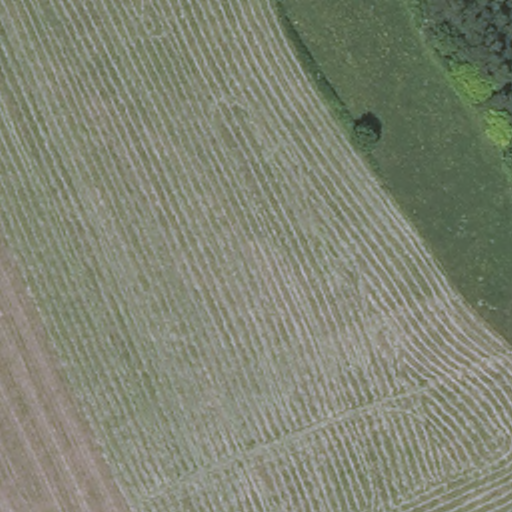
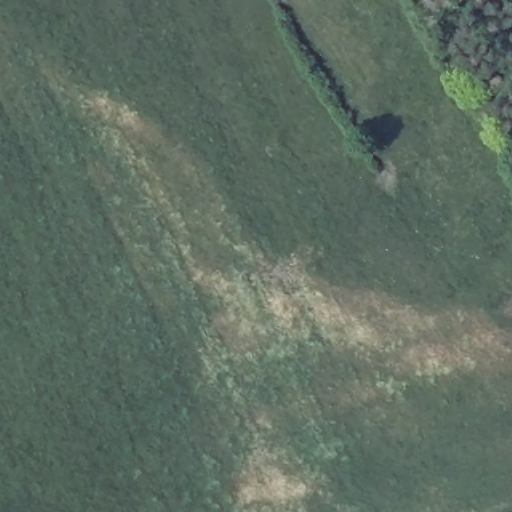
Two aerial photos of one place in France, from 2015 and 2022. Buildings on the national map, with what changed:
[]

